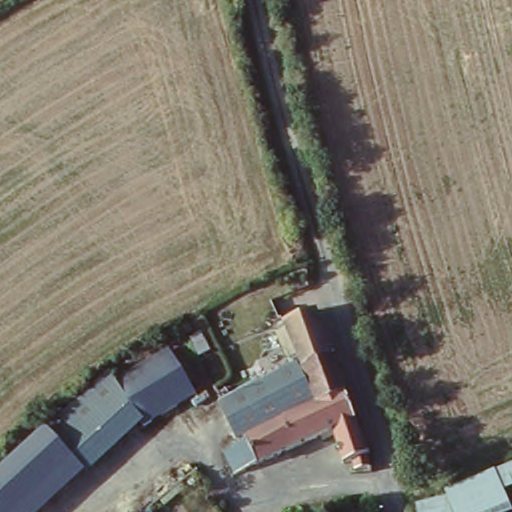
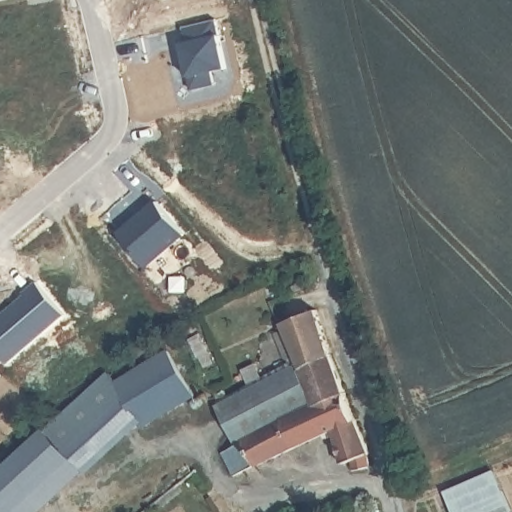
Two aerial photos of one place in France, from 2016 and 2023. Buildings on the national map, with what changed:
new [(218,22),(229,69),(215,73),(218,85),(187,91),(177,46),(184,43),(183,28),(218,22)]
new [(153,200),(180,231),(143,262),(116,232),(153,200)]
new [(34,283),(63,315),(5,363),(0,358),(0,314),(34,283)]
unchanged [(285,320),(313,305),(331,348),(304,362),(285,320)]
unchanged [(369,448),(373,457),(363,463),(358,453),(346,458),(330,425),(238,469),(226,446),(246,436),(320,398),(304,362),(331,348),(347,386),(363,422),(373,446),(369,448)]
unchanged [(166,354),(194,400),(143,430),(141,427),(116,385),(166,354)]
unchanged [(227,399),(304,362),(320,398),(246,436),(227,399)]
new [(1,376),(0,377),(0,376),(1,376)]
unchanged [(84,477),(47,434),(111,378),(116,385),(141,427),(84,477)]
unchanged [(0,512),(0,475),(47,434),(84,477),(45,512),(0,512)]
unchanged [(512,511),(510,512),(453,512),(445,493),(493,470),(512,511)]
unchanged [(364,512),(362,500),(385,493),(387,506),(366,512),(364,512)]

